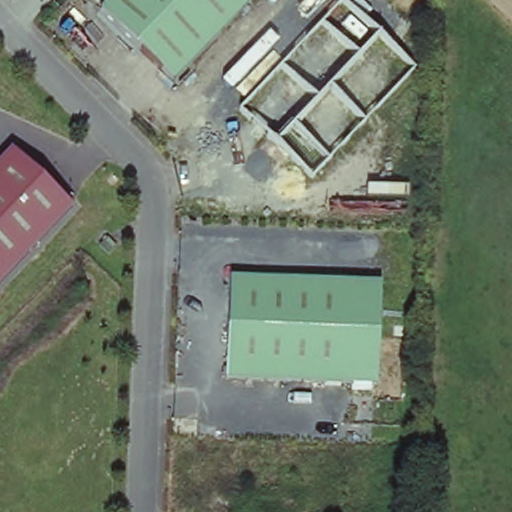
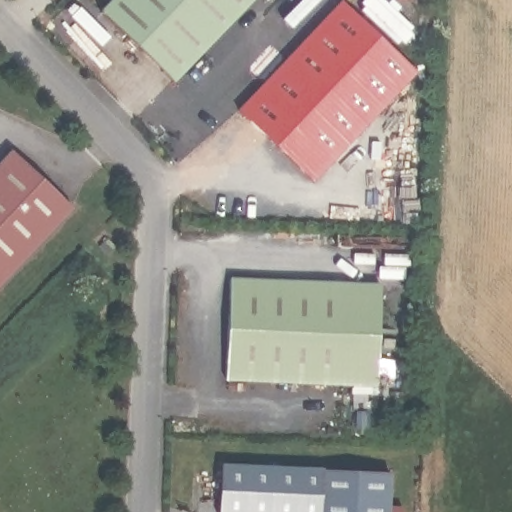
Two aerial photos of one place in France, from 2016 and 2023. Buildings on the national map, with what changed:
unchanged [(251,0),(173,82),(99,12),(111,0),(251,0)]
unchanged [(414,70),(311,181),(238,113),(343,2),(414,70)]
unchanged [(0,160),(9,150),(72,207),(0,284),(0,160)]
unchanged [(378,285),(377,384),(225,377),(229,277),(378,285)]
new [(389,472),(387,512),(218,512),(220,466),(389,472)]

